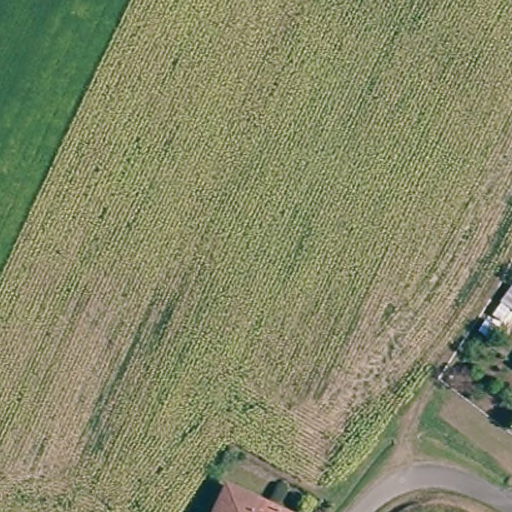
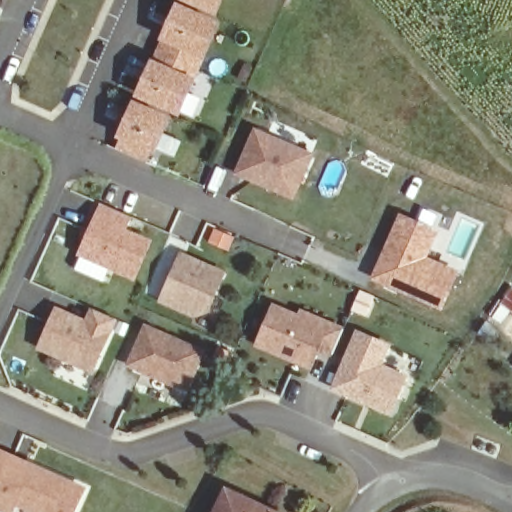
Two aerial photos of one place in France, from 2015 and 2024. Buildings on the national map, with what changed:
new [(182,0),(225,0),(218,14),(182,0)]
new [(206,61),(197,80),(181,117),(136,96),(152,61),(161,42),(178,4),(223,24),(206,61)]
new [(156,155),(151,153),(147,164),(116,150),(121,139),(117,138),(135,99),(173,117),(156,155)]
new [(296,199),(237,175),(255,129),(316,154),(296,199)]
new [(136,281),(78,257),(101,204),(134,218),(129,229),(154,240),(136,281)]
new [(399,212),(440,229),(428,255),(460,269),(442,307),(407,292),(409,288),(395,282),(392,289),(368,278),(399,212)]
new [(181,255),(223,274),(207,310),(195,317),(161,302),(181,255)]
unchanged [(502,304),(512,291),(512,312),(502,304)]
new [(297,317),(299,310),(326,322),(343,329),(332,354),(317,349),(309,367),(256,344),(273,306),(297,317)]
new [(58,312),(81,322),(80,325),(86,328),(95,310),(115,319),(92,371),(41,349),(58,312)]
new [(145,328),(203,352),(189,386),(175,380),(173,384),(129,366),(145,328)]
new [(393,416),(331,391),(357,329),(393,346),(384,367),(409,377),(393,416)]
new [(77,512),(27,512),(17,508),(14,512),(2,512),(0,511),(0,452),(87,488),(77,512)]
unchanged [(228,491),(274,512),(218,512),(228,491)]

